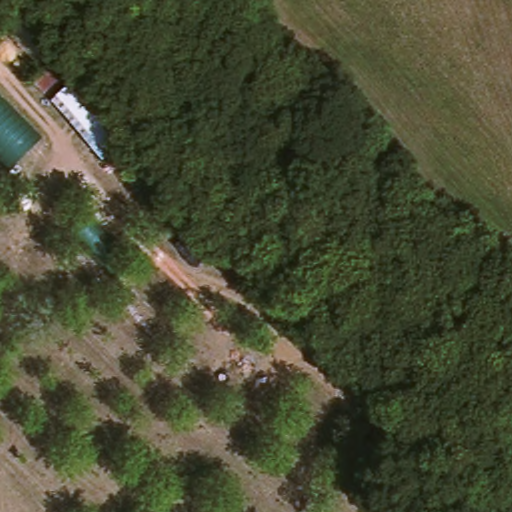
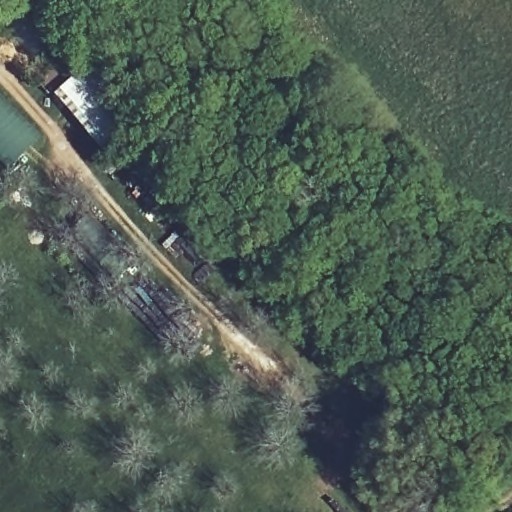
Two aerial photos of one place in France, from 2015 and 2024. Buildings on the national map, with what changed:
unchanged [(36,80),(58,59),(76,79),(126,135),(106,155),(53,99),(36,80)]
unchanged [(11,169),(0,158),(0,95),(43,135),(11,169)]

